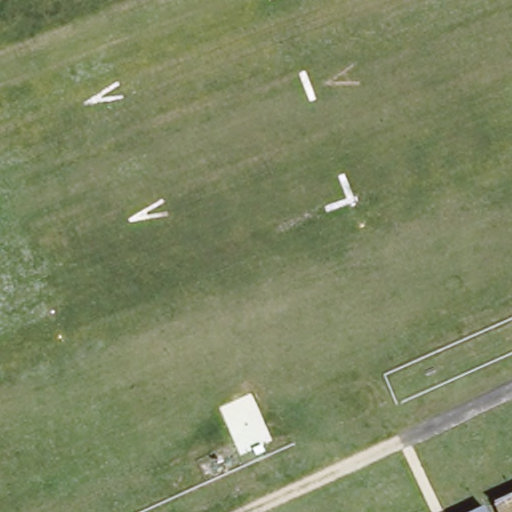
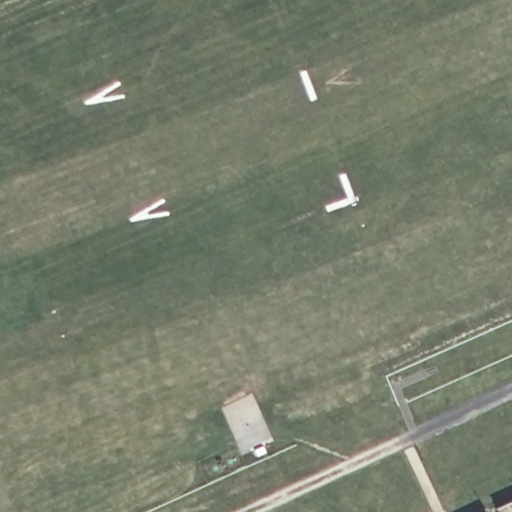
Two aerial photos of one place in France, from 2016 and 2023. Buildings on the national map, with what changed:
unchanged [(512,502),(512,512),(494,512),(493,510),(512,502)]

